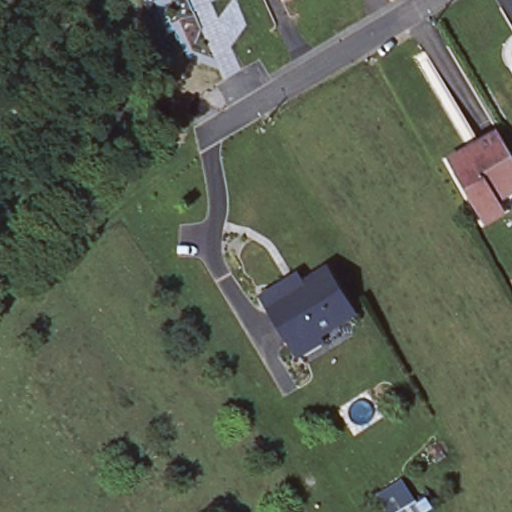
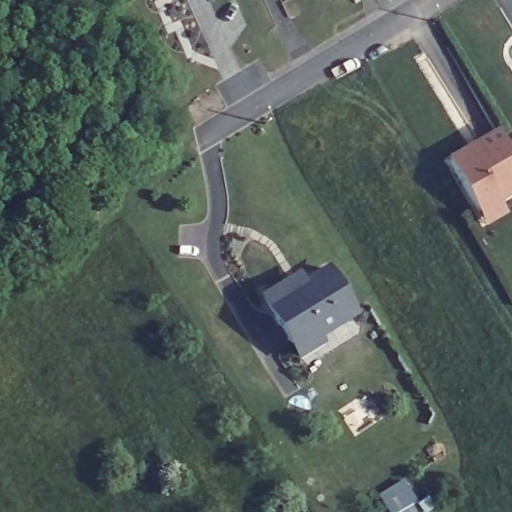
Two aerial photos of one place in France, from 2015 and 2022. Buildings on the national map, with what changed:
unchanged [(478,209),(449,159),(470,146),(474,152),(482,147),(479,142),(500,130),(512,152),(512,190),(499,197),(507,211),(486,223),(478,209)]
unchanged [(300,355),(293,343),(264,296),(290,280),(298,275),(304,283),(326,270),(354,313),(319,337),(322,342),(300,355)]

